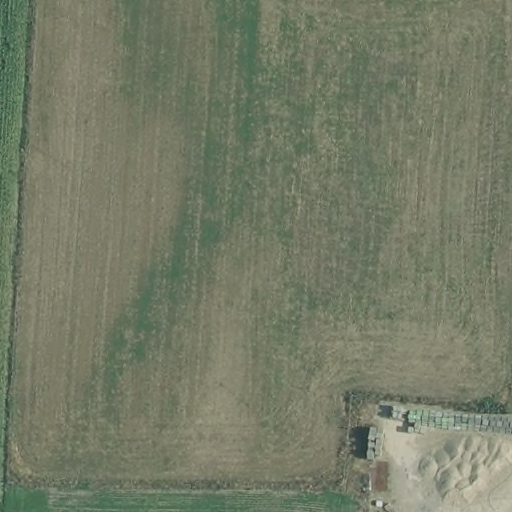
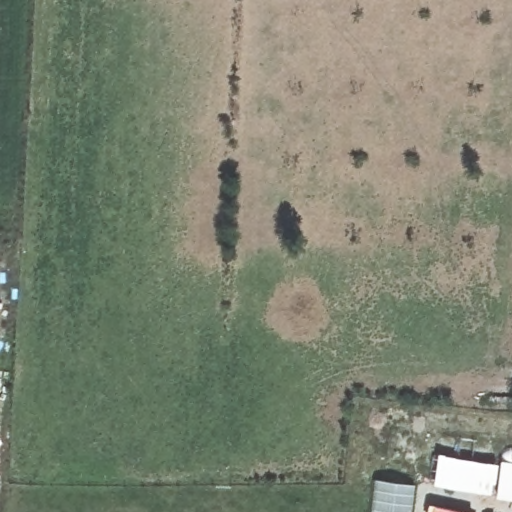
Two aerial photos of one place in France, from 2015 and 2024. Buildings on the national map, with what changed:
new [(435,451),(497,461),(493,494),(430,483),(435,451)]
new [(497,461),(512,462),(512,500),(492,497),(493,494),(497,461)]
new [(372,477),(412,482),(408,512),(369,512),(372,477)]

